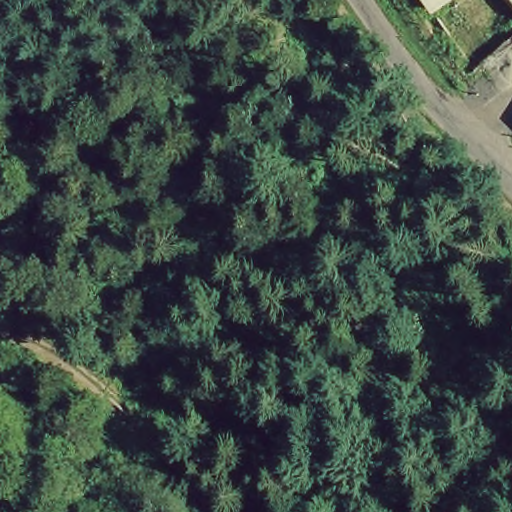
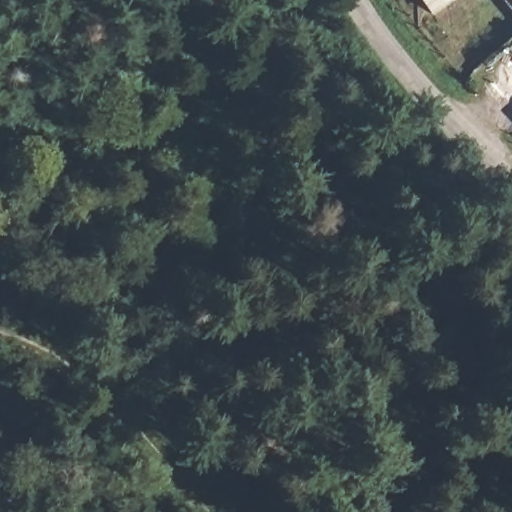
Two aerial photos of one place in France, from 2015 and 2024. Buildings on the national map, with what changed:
unchanged [(415,0),(457,0),(429,20),(415,0)]

